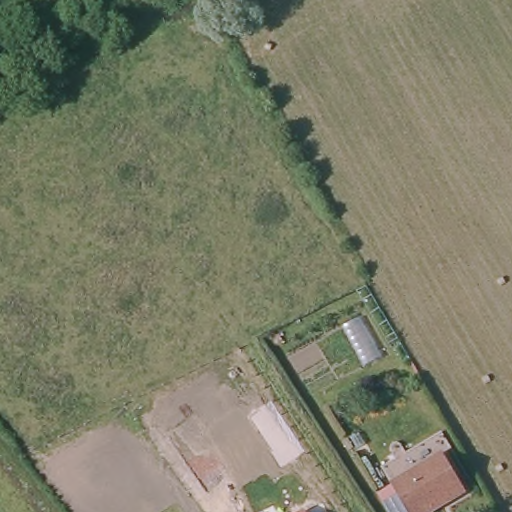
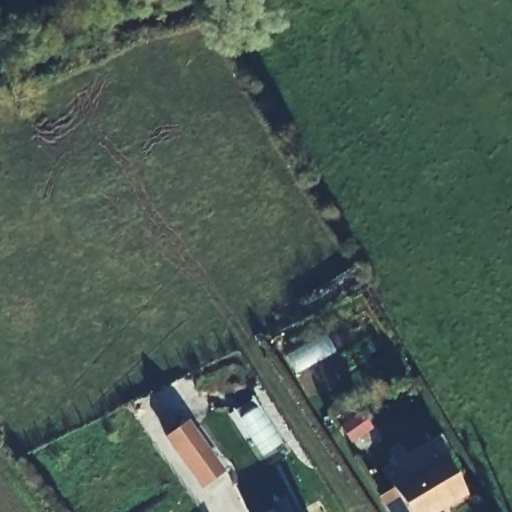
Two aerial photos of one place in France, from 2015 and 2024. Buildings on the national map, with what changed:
new [(357,443),(347,430),(365,416),(375,429),(357,443)]
new [(225,471),(203,488),(165,437),(190,420),(225,471)]
unchanged [(462,492),(433,512),(410,512),(393,483),(439,454),(462,492)]

